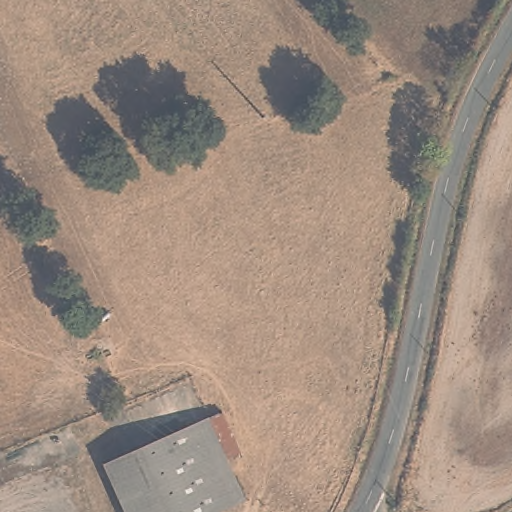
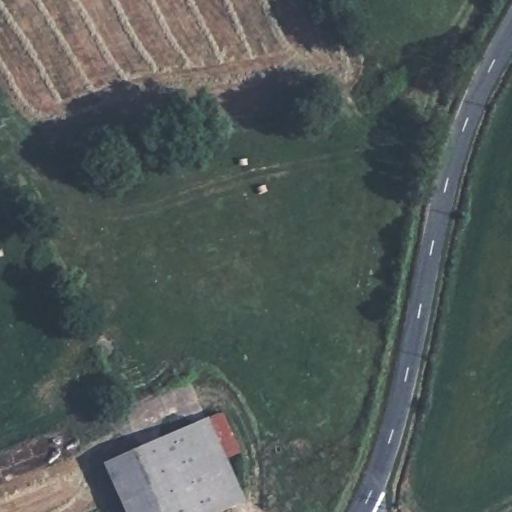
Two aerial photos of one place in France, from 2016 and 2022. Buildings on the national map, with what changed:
unchanged [(104,461),(142,443),(208,414),(245,496),(210,512),(127,512),(104,461)]

